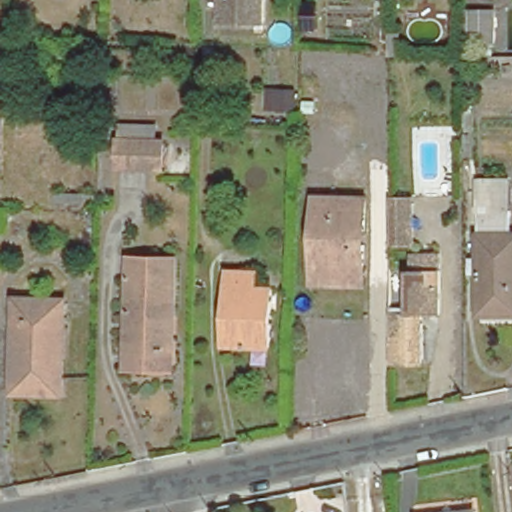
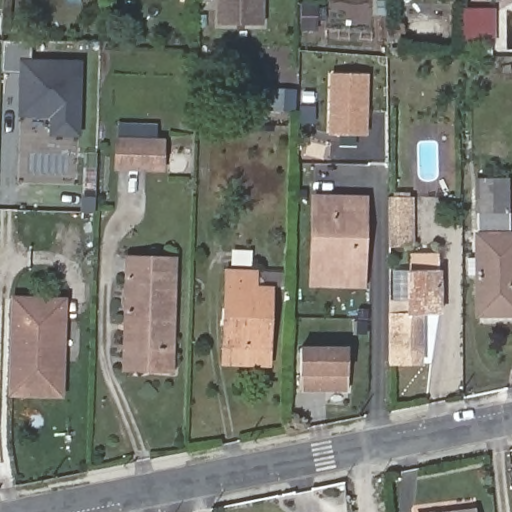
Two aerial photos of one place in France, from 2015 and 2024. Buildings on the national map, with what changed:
unchanged [(265,26),(220,25),(220,0),(265,0),(265,26)]
unchanged [(496,9),(496,42),(463,42),(463,9),(496,9)]
unchanged [(389,29),(400,29),(401,55),(390,55),(389,29)]
unchanged [(478,55),(478,44),(492,44),(492,55),(478,55)]
new [(20,60),(82,61),(80,137),(50,136),(50,116),(17,116),(20,60)]
new [(335,75),(369,75),(370,134),(335,134),(335,75)]
unchanged [(295,111),(265,110),(265,89),(295,90),(295,111)]
unchanged [(315,101),(315,113),(302,113),(302,100),(315,101)]
unchanged [(170,181),(121,178),(123,147),(124,133),(162,135),(162,148),(171,149),(170,181)]
unchanged [(508,180),(508,231),(512,231),(512,312),(480,312),(481,181),(508,180)]
unchanged [(55,194),(83,194),(83,206),(55,206),(55,194)]
unchanged [(304,284),(305,271),(306,198),(356,200),(354,273),(353,286),(304,284)]
unchanged [(408,203),(408,250),(385,250),(385,208),(385,203),(408,203)]
unchanged [(132,374),(132,361),(135,263),(180,264),(180,320),(178,375),(132,374)]
unchanged [(385,314),(406,314),(405,269),(430,269),(430,314),(417,314),(417,362),(385,362),(385,314)]
unchanged [(213,270),(241,271),(241,287),(257,288),(255,346),(210,344),(210,330),(211,315),(213,270)]
unchanged [(14,391),(17,299),(64,300),(63,319),(61,373),(60,393),(14,391)]
new [(296,349),(354,350),(353,391),(295,390),(296,349)]
unchanged [(457,512),(476,510),(476,512),(457,512)]

